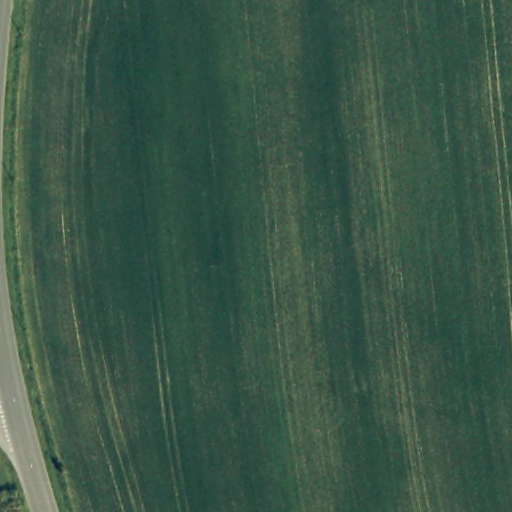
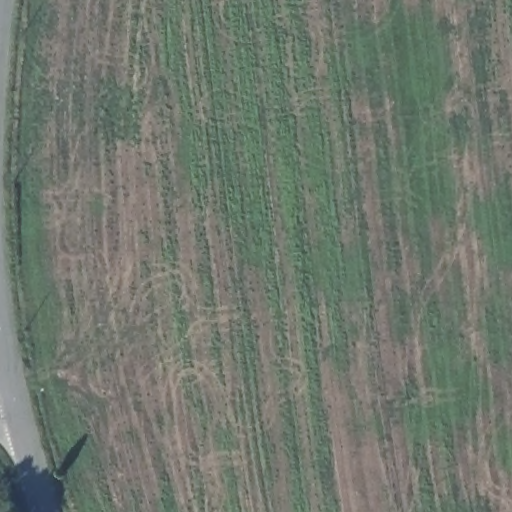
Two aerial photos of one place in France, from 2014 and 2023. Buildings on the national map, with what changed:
[]

